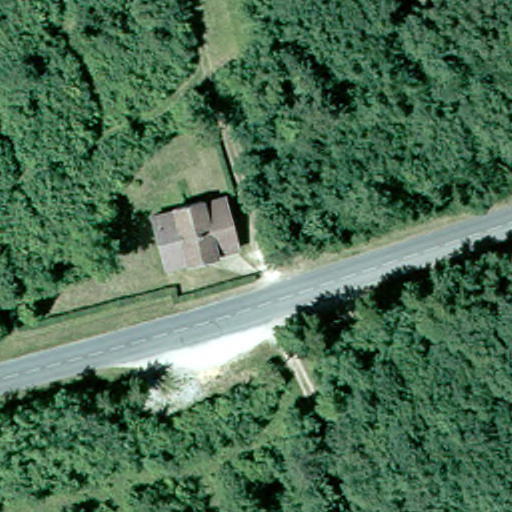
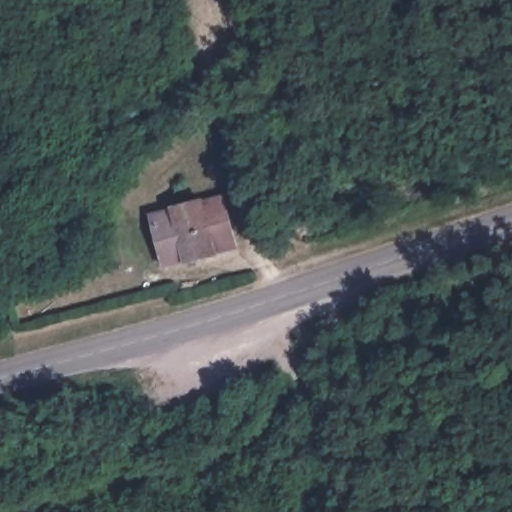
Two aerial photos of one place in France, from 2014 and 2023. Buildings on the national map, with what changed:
unchanged [(161,201),(190,190),(197,206),(218,197),(234,247),(162,270),(143,224),(166,212),(161,201)]

